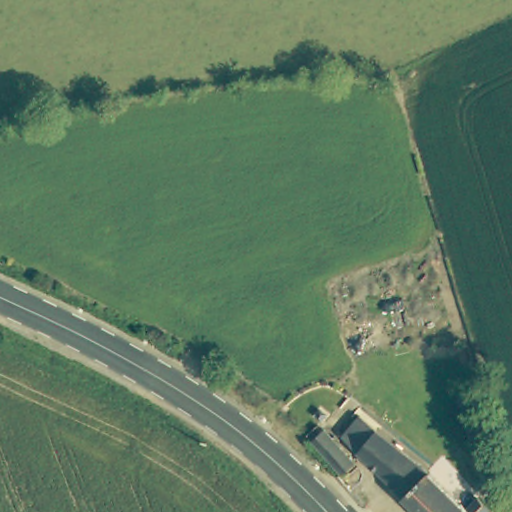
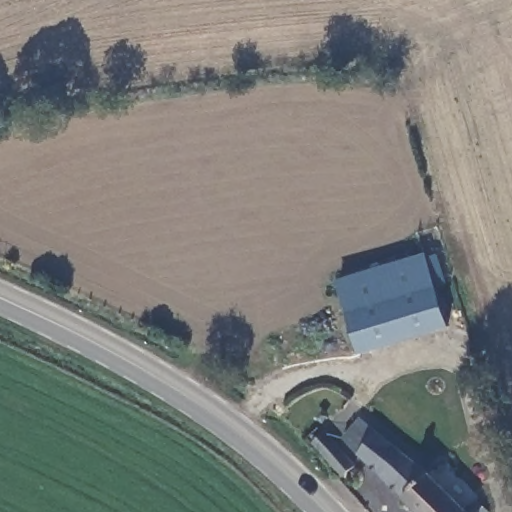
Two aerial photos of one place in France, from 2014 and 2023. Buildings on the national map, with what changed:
new [(427,253),(450,327),(360,354),(337,281),(427,253)]
unchanged [(335,472),(325,460),(306,436),(315,426),(336,450),(347,462),(335,472)]
unchanged [(357,453),(377,435),(400,452),(427,476),(452,502),(441,512),(414,512),(377,473),(357,453)]
unchanged [(462,512),(441,512),(452,502),(462,512)]
unchanged [(475,505),(482,512),(467,512),(475,505)]

